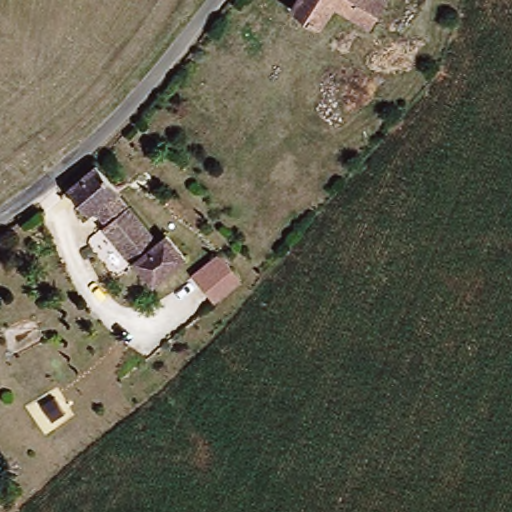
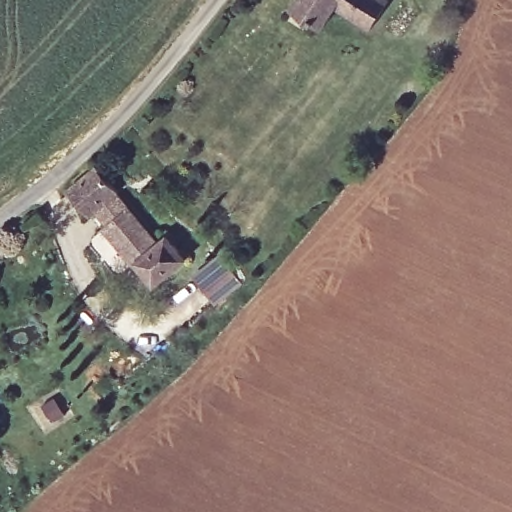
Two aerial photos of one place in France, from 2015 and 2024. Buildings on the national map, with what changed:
unchanged [(336,10),(321,31),(290,10),(296,0),(388,0),(366,35),(336,10)]
unchanged [(109,240),(114,235),(102,221),(95,227),(70,204),(98,176),(121,199),(121,202),(139,220),(118,247),(109,240)]
unchanged [(175,240),(197,262),(168,290),(148,270),(144,272),(118,247),(139,220),(168,247),(175,240)]
unchanged [(221,258),(241,280),(216,303),(196,281),(221,258)]

